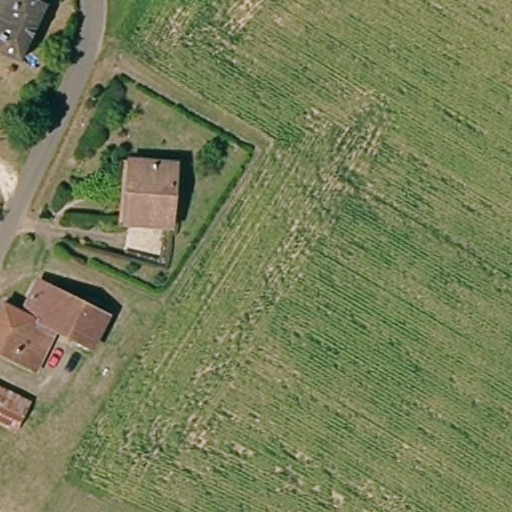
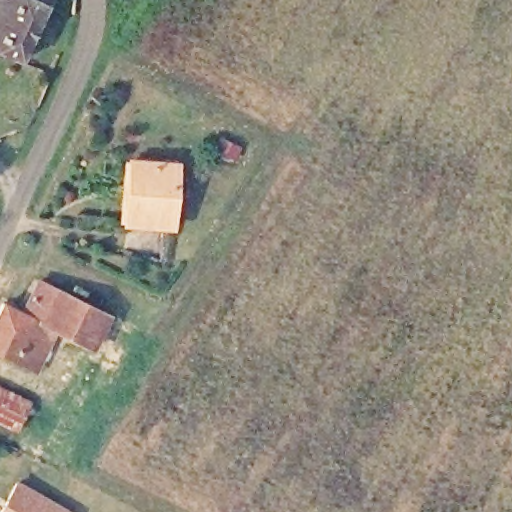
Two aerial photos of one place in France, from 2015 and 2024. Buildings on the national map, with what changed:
unchanged [(16,63),(0,56),(0,0),(45,0),(16,63)]
unchanged [(125,223),(125,162),(170,162),(169,220),(125,223)]
unchanged [(100,327),(89,347),(54,329),(22,314),(37,283),(38,279),(106,312),(104,317),(100,327)]
unchanged [(22,314),(54,329),(89,347),(85,355),(50,336),(34,372),(27,368),(0,355),(0,307),(1,304),(22,314)]
unchanged [(19,395),(25,398),(13,423),(0,417),(0,385),(19,395)]
new [(69,512),(0,512),(0,509),(16,481),(69,512)]

